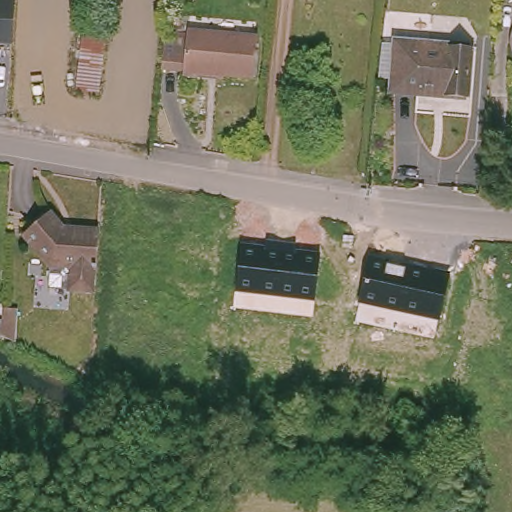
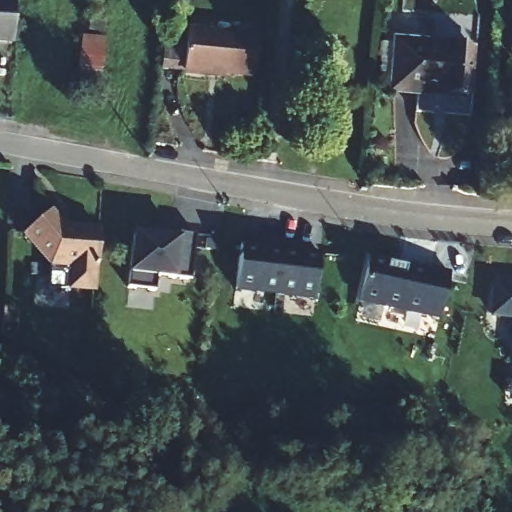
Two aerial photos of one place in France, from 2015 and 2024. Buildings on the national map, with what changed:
unchanged [(0,45),(0,0),(14,0),(13,46),(0,45)]
unchanged [(190,32),(188,28),(252,35),(248,79),(175,69),(173,67),(156,65),(160,28),(190,32)]
unchanged [(508,32),(512,28),(512,40),(508,32)]
unchanged [(102,38),(97,98),(72,96),(77,35),(102,38)]
unchanged [(467,97),(437,96),(437,87),(385,85),(389,43),(470,45),(467,97)]
unchanged [(92,288),(67,287),(67,265),(47,263),(19,236),(42,212),(63,233),(68,233),(69,227),(95,229),(92,288)]
new [(133,238),(177,244),(177,237),(195,240),(189,286),(155,281),(153,296),(127,293),(133,238)]
unchanged [(238,244),(265,247),(267,240),(295,243),(295,249),(320,251),(315,301),(235,293),(238,244)]
unchanged [(357,303),(367,256),(450,272),(440,321),(357,303)]
new [(492,291),(510,292),(512,295),(512,322),(510,321),(490,320),(492,291)]
unchanged [(25,316),(27,342),(13,342),(10,317),(25,316)]

